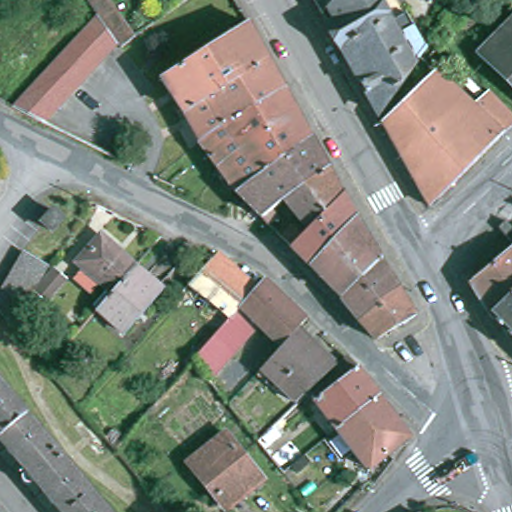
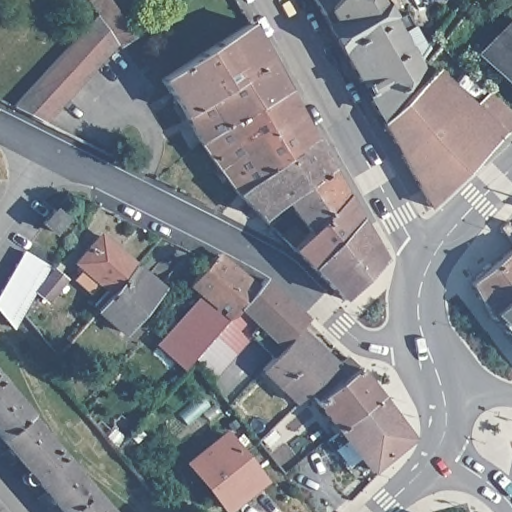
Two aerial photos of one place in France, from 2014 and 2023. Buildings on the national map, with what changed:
unchanged [(126,43),(123,39),(102,9),(102,8),(96,0),(115,0),(139,34),(126,43)]
unchanged [(402,22),(415,14),(438,48),(389,115),(338,26),(332,15),(324,0),(389,0),(402,22)]
unchanged [(102,9),(123,39),(51,117),(18,101),(102,9)]
unchanged [(476,45),(512,9),(512,80),(476,45)]
unchanged [(254,23),(290,89),(205,143),(190,115),(166,79),(254,23)]
unchanged [(498,92),(512,105),(512,137),(510,139),(440,208),(393,122),(412,104),(407,100),(435,59),(454,77),(483,105),(498,92)]
unchanged [(290,89),(317,137),(242,194),(205,143),(290,89)]
unchanged [(267,219),(242,194),(317,137),(335,169),(288,203),(278,211),(283,218),(274,226),(273,225),(267,219)]
unchanged [(335,169),(349,196),(312,233),(288,203),(335,169)]
demolished [(0,191),(0,181),(5,187),(0,191)]
unchanged [(298,229),(307,237),(312,233),(349,196),(361,218),(315,266),(297,248),(287,239),(298,229)]
unchanged [(315,266),(361,218),(386,260),(347,299),(315,266)]
unchanged [(103,310),(103,309),(98,306),(113,289),(105,282),(95,294),(80,280),(90,269),(83,263),(106,237),(140,267),(103,310)]
unchanged [(27,314),(19,328),(0,306),(0,300),(28,252),(54,267),(52,270),(27,314)]
unchanged [(495,316),(476,283),(512,252),(512,334),(495,316)]
unchanged [(190,290),(210,267),(217,260),(257,293),(231,323),(190,290)]
demolished [(347,299),(386,260),(404,288),(365,323),(347,299)]
unchanged [(127,338),(100,314),(103,309),(103,310),(140,267),(167,291),(127,338)]
unchanged [(71,280),(52,301),(41,292),(60,270),(71,280)]
unchanged [(265,284),(291,310),(305,323),(307,325),(298,334),(282,353),(280,351),(266,338),(260,332),(210,385),(197,369),(194,364),(231,323),(257,293),(265,284)]
demolished [(422,316),(382,341),(365,323),(404,288),(422,316)]
new [(231,323),(194,364),(183,376),(155,348),(199,298),(231,323)]
unchanged [(282,353),(298,334),(337,371),(324,384),(297,410),(262,375),(282,353)]
unchanged [(331,393),(324,384),(337,371),(347,363),(357,373),(380,401),(338,434),(316,404),(331,393)]
unchanged [(74,512),(47,480),(42,483),(41,484),(40,485),(38,485),(37,485),(35,484),(34,483),(33,482),(32,481),(32,479),(32,478),(32,476),(33,475),(35,474),(38,470),(0,424),(0,372),(118,512),(74,512)]
unchanged [(380,401),(411,442),(389,460),(370,474),(338,434),(380,401)]
unchanged [(117,431),(125,439),(116,450),(111,444),(107,440),(117,431)]
unchanged [(262,481),(227,509),(190,464),(226,436),(262,481)]

